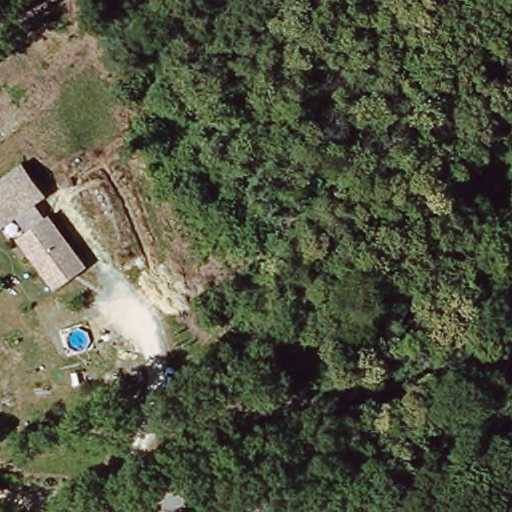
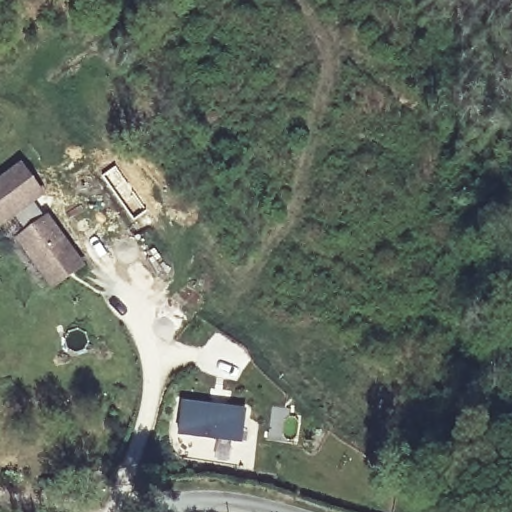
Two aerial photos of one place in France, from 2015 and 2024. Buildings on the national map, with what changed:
unchanged [(72,275),(57,286),(47,275),(27,247),(22,239),(30,232),(17,215),(0,227),(0,226),(0,183),(24,166),(45,194),(35,202),(48,220),(50,218),(77,254),(85,266),(72,275)]
new [(179,435),(182,402),(247,411),(242,443),(179,435)]

